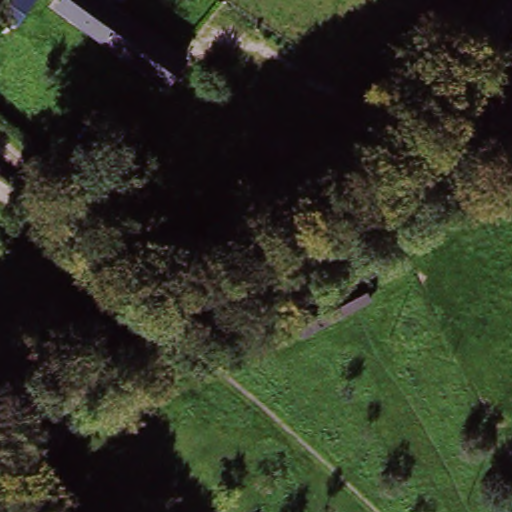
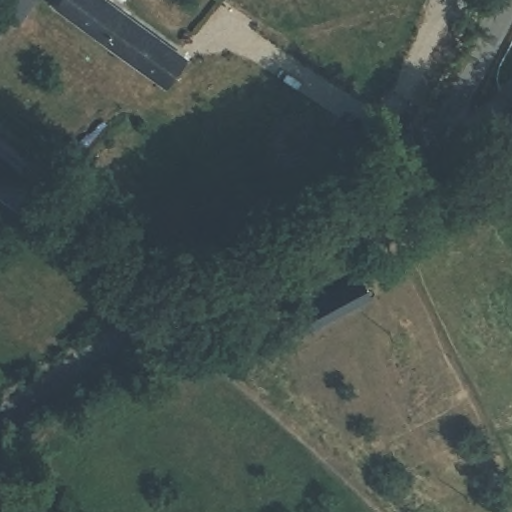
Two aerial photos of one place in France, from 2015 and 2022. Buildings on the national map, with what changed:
unchanged [(56,4),(58,0),(108,0),(184,52),(164,80),(56,4)]
unchanged [(365,293),(296,332),(285,313),(354,274),(365,293)]

